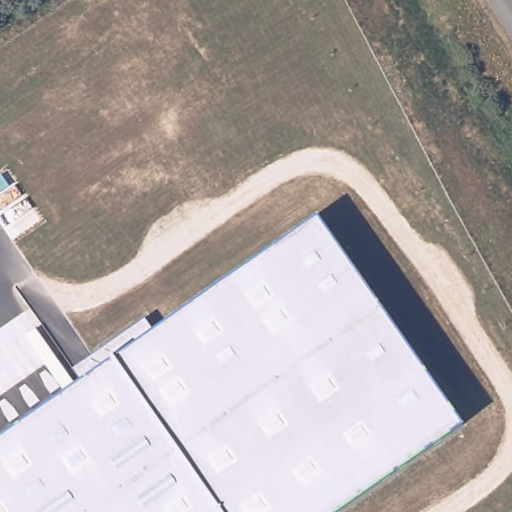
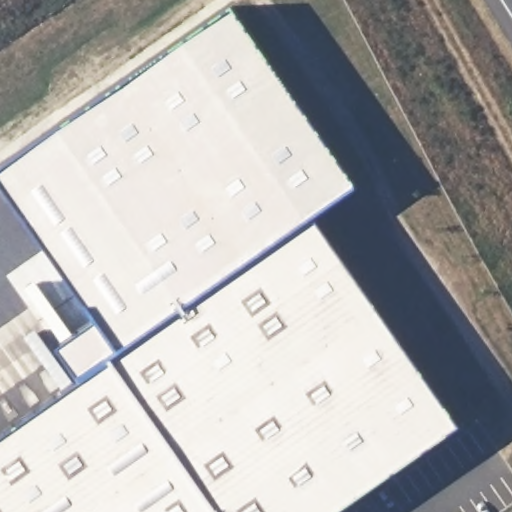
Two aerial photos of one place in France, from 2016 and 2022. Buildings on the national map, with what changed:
new [(58,349),(99,321),(0,181),(0,167),(233,7),(357,186),(316,218),(81,381),(58,349)]
unchanged [(333,512),(0,512),(0,438),(316,218),(457,423),(333,512)]

